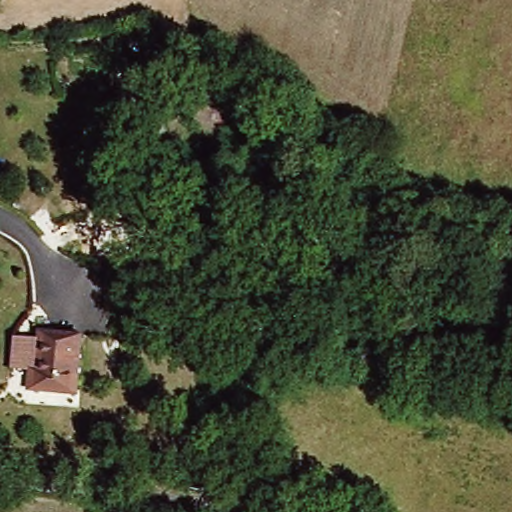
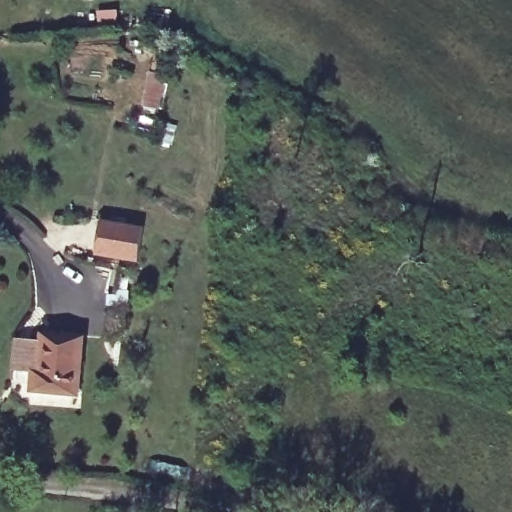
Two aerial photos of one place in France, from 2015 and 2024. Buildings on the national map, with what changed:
unchanged [(150,102),(152,82),(169,85),(165,105),(150,102)]
new [(138,259),(105,253),(97,252),(103,217),(109,219),(143,224),(138,259)]
unchanged [(86,332),(82,388),(32,384),(34,368),(16,367),(17,337),(47,338),(47,329),(86,332)]

